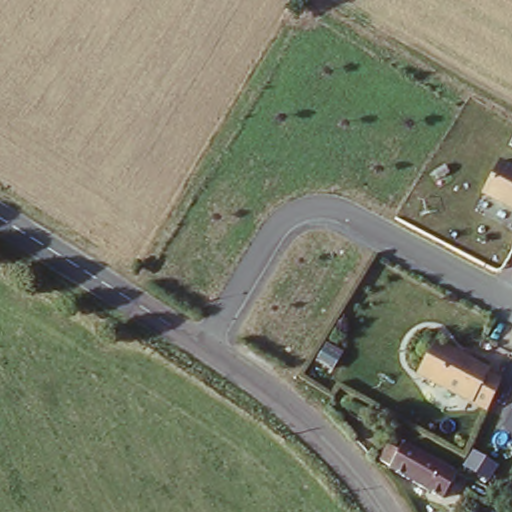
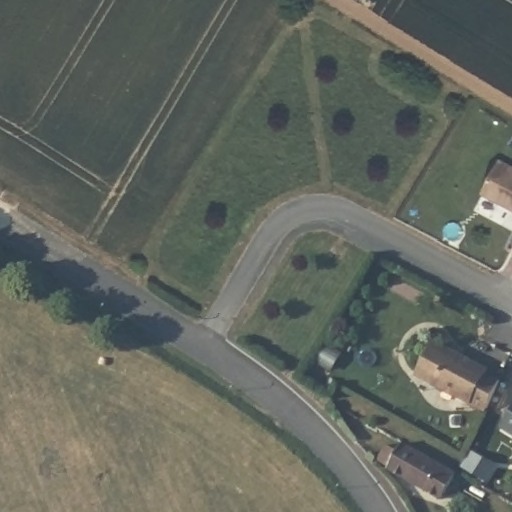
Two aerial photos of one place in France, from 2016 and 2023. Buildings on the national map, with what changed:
unchanged [(512,166),(512,209),(483,196),(502,161),(512,166)]
unchanged [(436,340),(487,365),(487,371),(501,380),(483,410),(418,375),(436,340)]
unchanged [(512,434),(501,428),(512,410),(512,434)]
unchanged [(449,500),(386,460),(398,440),(462,476),(449,500)]

